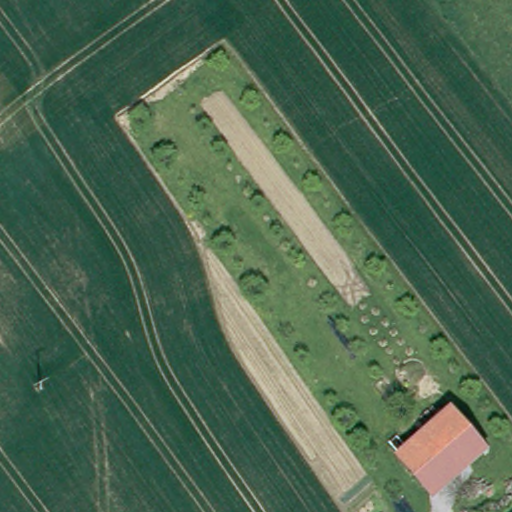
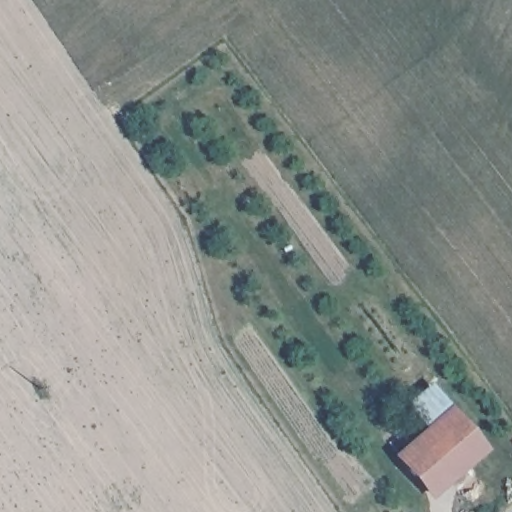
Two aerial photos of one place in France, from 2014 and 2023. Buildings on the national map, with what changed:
unchanged [(453,407),(494,452),(434,500),(396,455),(453,407)]

